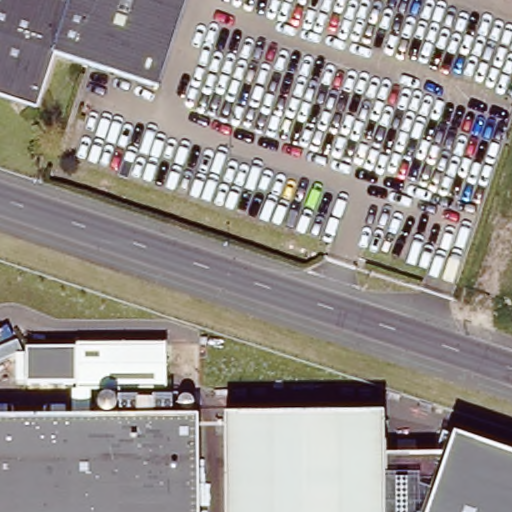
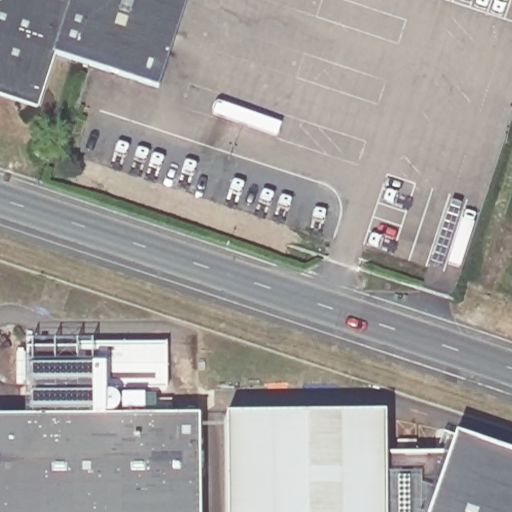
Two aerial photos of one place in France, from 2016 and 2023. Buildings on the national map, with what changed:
unchanged [(79,58),(64,105),(0,85),(0,0),(183,0),(157,81),(79,58)]
unchanged [(76,345),(77,378),(25,381),(26,347),(76,345)]
unchanged [(76,345),(169,345),(169,383),(77,378),(76,345)]
unchanged [(227,411),(385,411),(386,512),(227,512),(227,411)]
unchanged [(196,512),(0,512),(0,422),(198,420),(196,512)]
unchanged [(449,437),(512,459),(512,512),(386,512),(386,455),(445,452),(449,437)]

